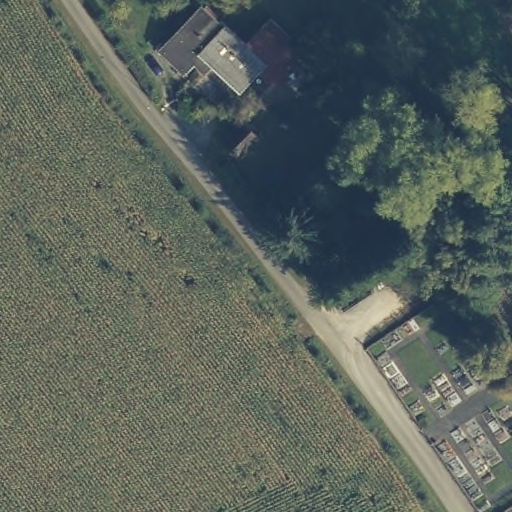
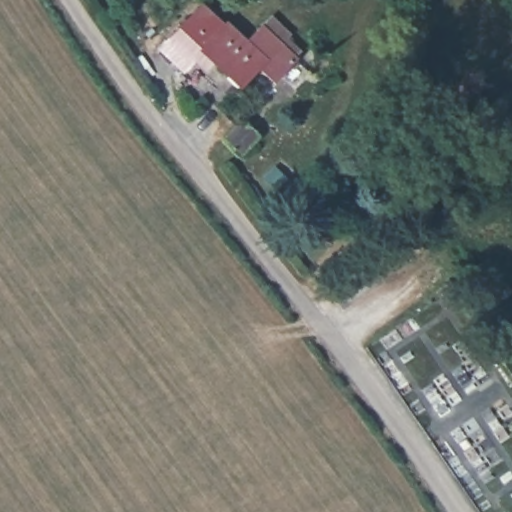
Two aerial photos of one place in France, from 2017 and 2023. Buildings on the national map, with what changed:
unchanged [(158,40),(166,32),(197,2),(219,21),(224,16),(243,34),(269,15),(278,25),(275,30),(295,47),(291,52),(297,56),(272,78),(252,63),(233,77),(196,46),(190,53),(181,60),(158,40)]
unchanged [(237,114),(253,128),(233,148),(219,134),(237,114)]

